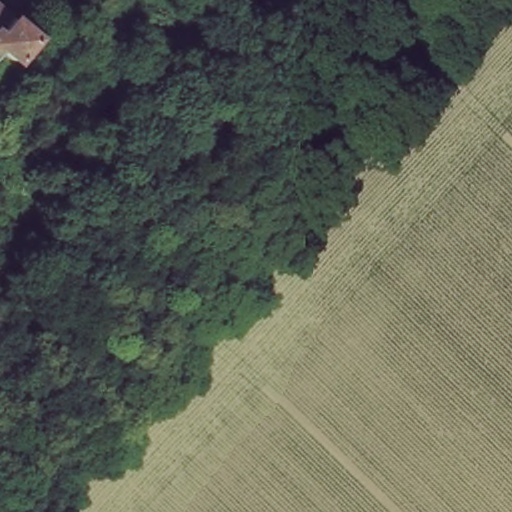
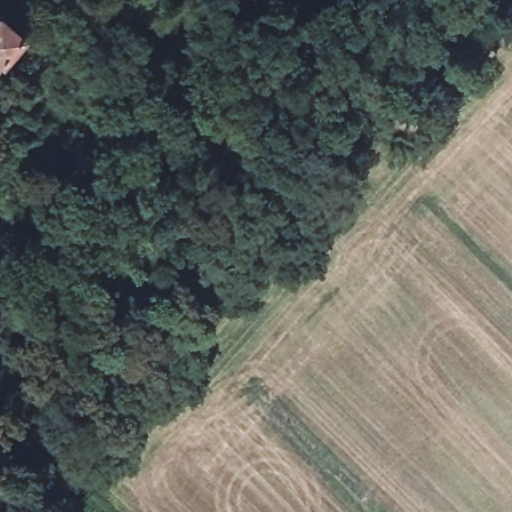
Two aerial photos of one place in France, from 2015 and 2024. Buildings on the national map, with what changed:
unchanged [(10,36),(0,49),(0,26),(10,36)]

